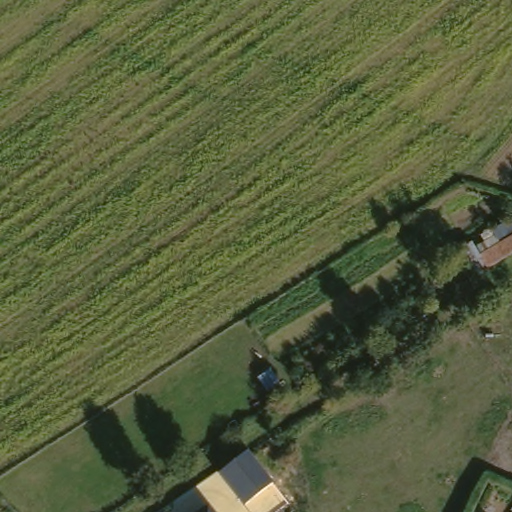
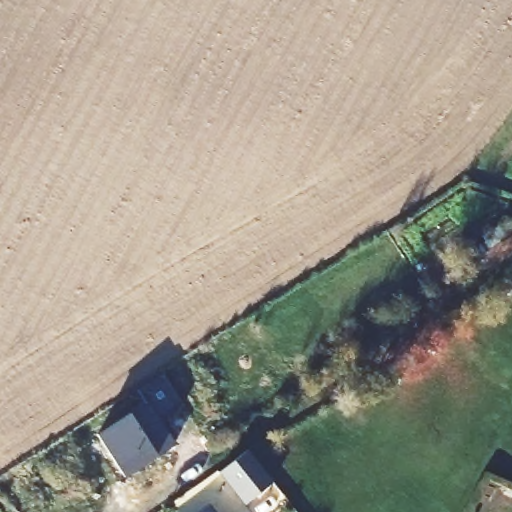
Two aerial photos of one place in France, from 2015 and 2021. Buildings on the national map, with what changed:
new [(146,403),(138,390),(162,375),(183,405),(160,421),(175,445),(125,477),(97,435),(146,403)]
unchanged [(273,484),(246,506),(221,475),(228,470),(251,456),(273,484)]
unchanged [(212,512),(200,512),(207,506),(212,512)]

